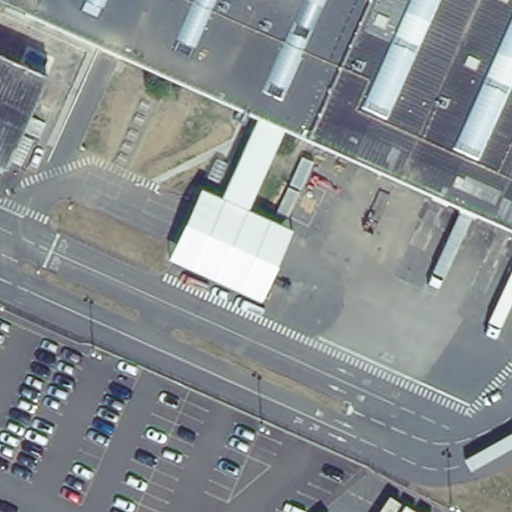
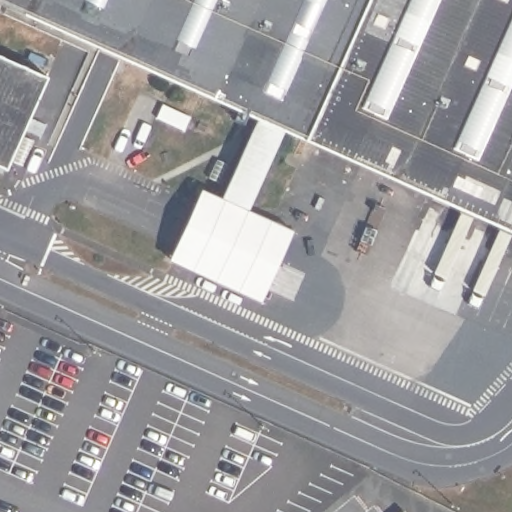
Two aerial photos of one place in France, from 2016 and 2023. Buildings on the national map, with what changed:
unchanged [(106,47),(0,2),(0,0),(512,0),(512,222),(106,47)]
unchanged [(2,167),(0,165),(0,54),(45,74),(2,167)]
unchanged [(260,301),(168,260),(200,189),(221,198),(261,114),(285,124),(246,210),(291,231),(260,301)]

